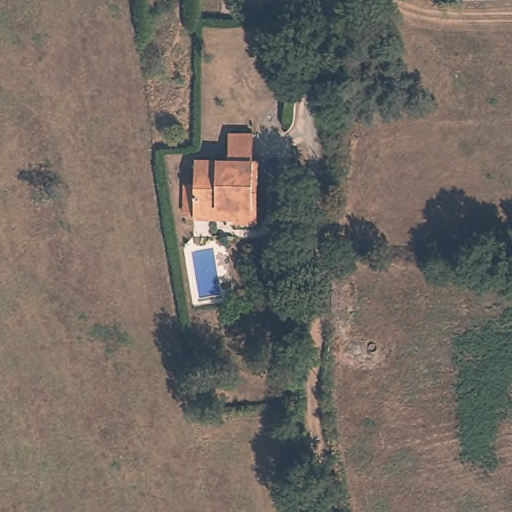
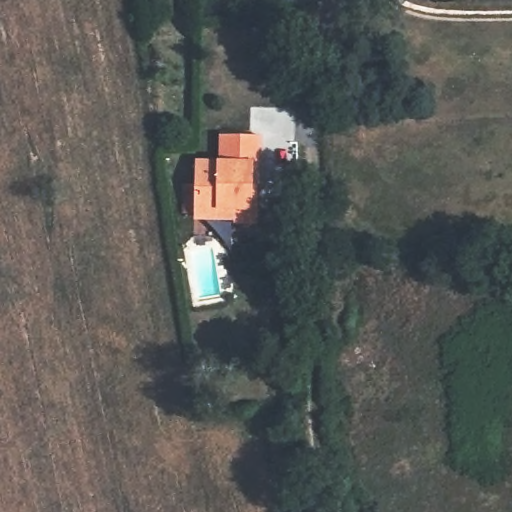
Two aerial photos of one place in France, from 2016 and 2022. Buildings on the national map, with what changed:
unchanged [(255,222),(231,222),(231,218),(192,217),(192,210),(181,210),(181,182),(192,182),(194,157),(226,157),(227,131),(250,131),(251,157),(256,157),(256,182),(255,209),(255,222)]
unchanged [(289,186),(289,165),(295,165),(296,186),(289,186)]

